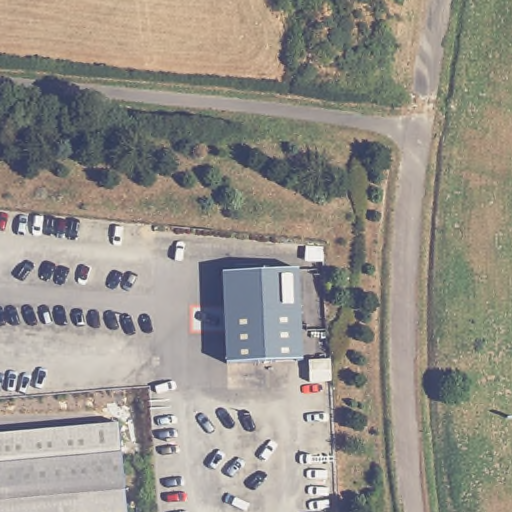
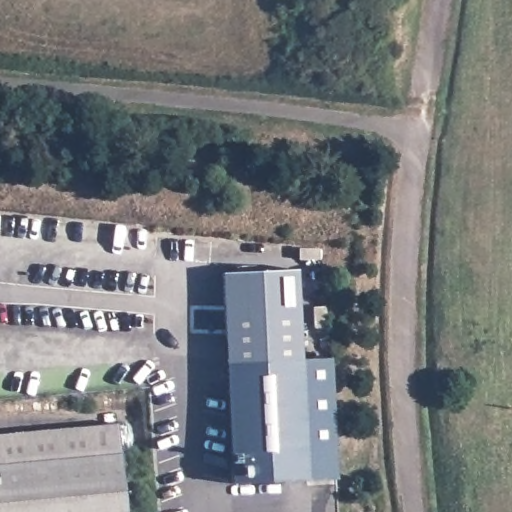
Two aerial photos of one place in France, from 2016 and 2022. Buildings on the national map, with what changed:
unchanged [(220,273),(296,269),(300,361),(225,364),(220,273)]
new [(333,358),(338,479),(230,482),(225,364),(300,361),(333,358)]
unchanged [(118,424),(120,455),(125,512),(0,512),(0,436),(118,424)]

